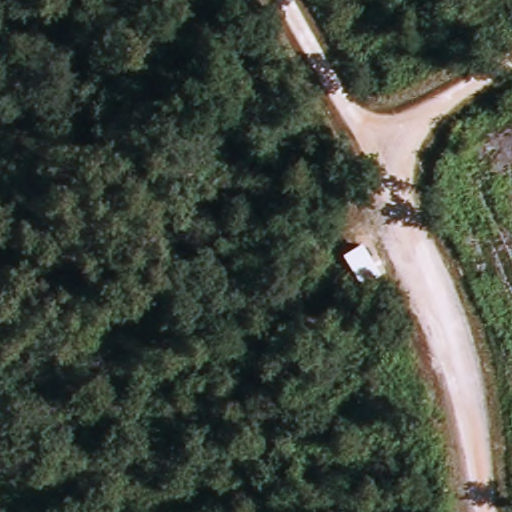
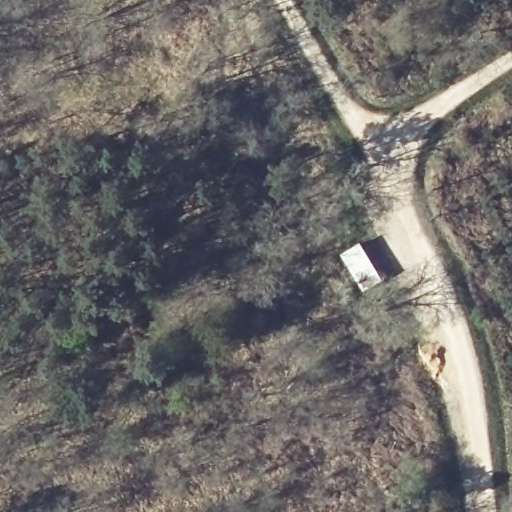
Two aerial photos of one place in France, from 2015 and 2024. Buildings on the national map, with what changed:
unchanged [(382,274),(363,286),(341,252),(360,238),(382,274)]

